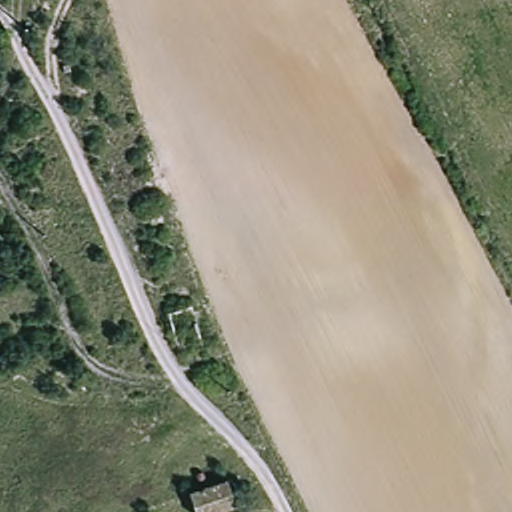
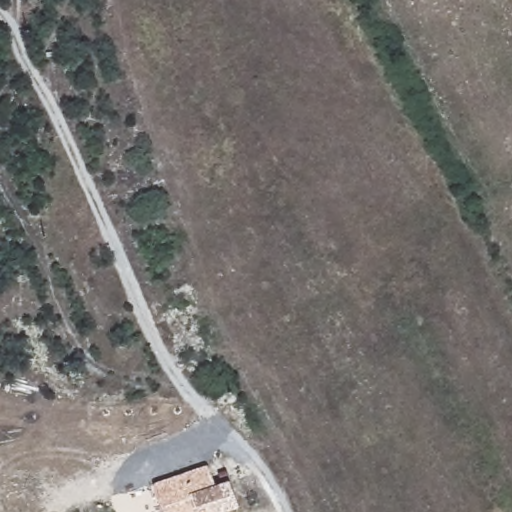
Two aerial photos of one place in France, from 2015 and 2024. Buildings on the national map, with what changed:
new [(215,487),(190,495),(194,512),(163,512),(153,485),(208,465),(215,487)]
unchanged [(233,512),(194,512),(190,495),(226,485),(233,512)]

